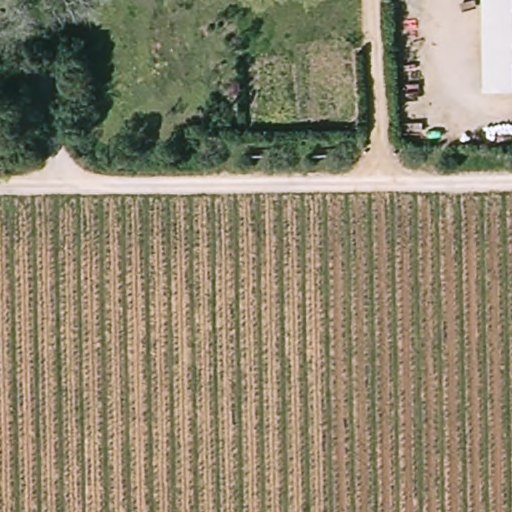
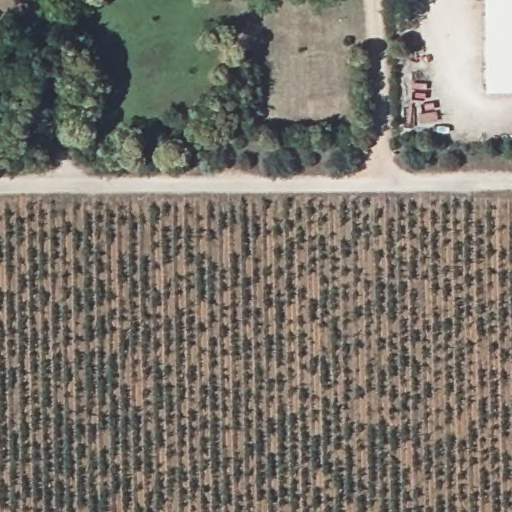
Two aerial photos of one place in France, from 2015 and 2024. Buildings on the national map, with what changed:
unchanged [(488,95),(486,0),(512,0),(512,95),(488,95)]

